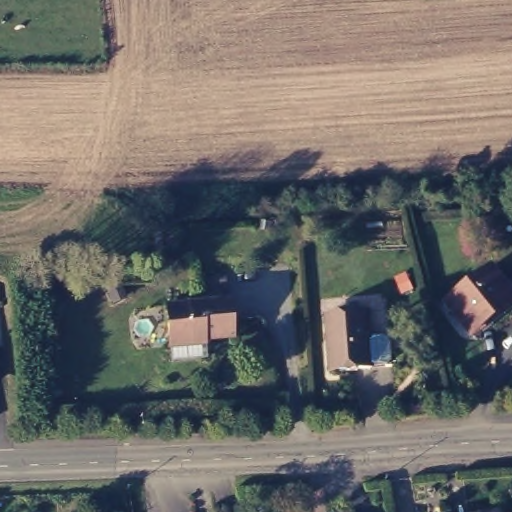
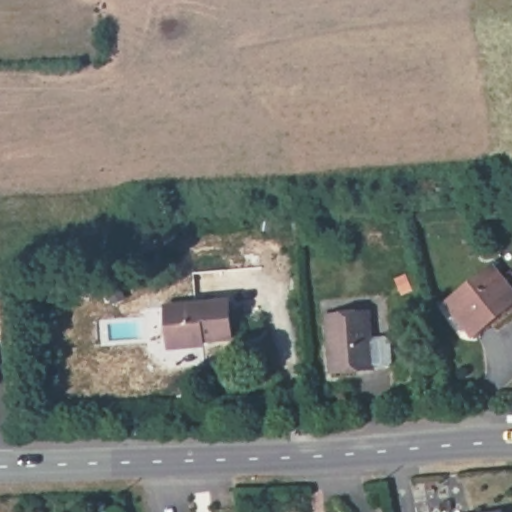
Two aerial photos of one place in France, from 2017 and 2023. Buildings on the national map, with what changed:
unchanged [(486,273),(507,301),(470,332),(447,304),(486,273)]
unchanged [(197,347),(171,349),(170,305),(233,302),(235,337),(203,338),(204,347),(197,347)]
unchanged [(327,315),(369,312),(370,338),(390,337),(390,367),(370,368),(328,371),(327,315)]
unchanged [(502,512),(499,512),(502,511),(502,512)]

